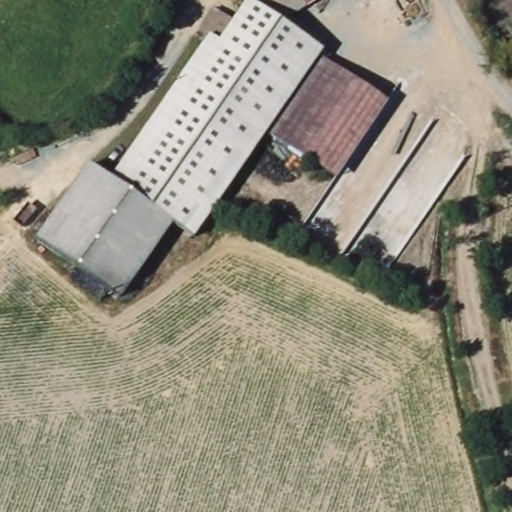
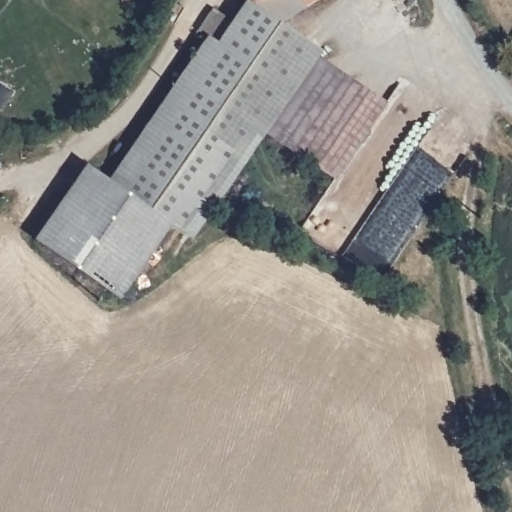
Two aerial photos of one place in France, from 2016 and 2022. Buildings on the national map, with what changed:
unchanged [(108,174),(209,35),(199,27),(217,5),(233,16),(245,0),(313,0),(283,18),(328,44),(326,48),(271,129),(194,237),(174,224),(123,296),(36,235),(88,161),(108,174)]
unchanged [(397,95),(338,175),(271,129),(326,48),(397,95)]

